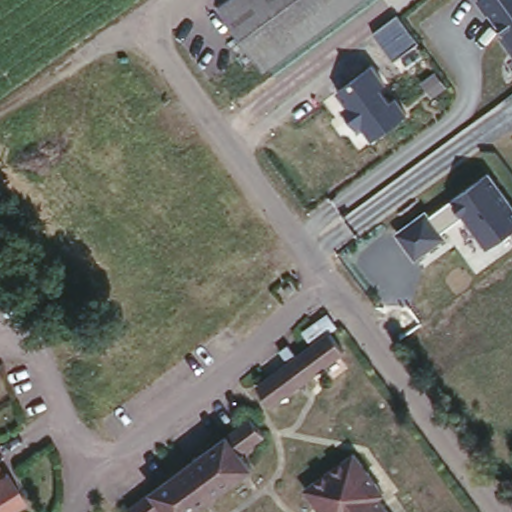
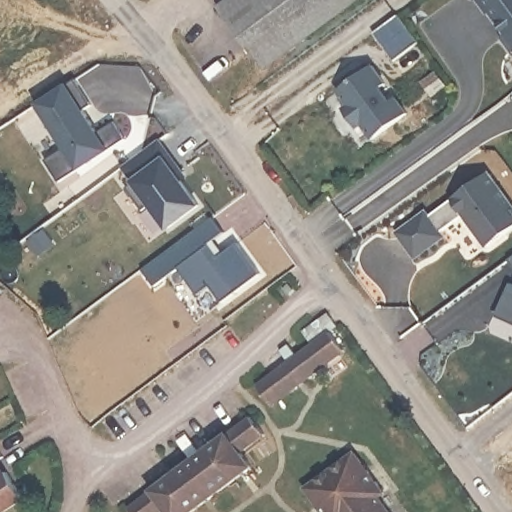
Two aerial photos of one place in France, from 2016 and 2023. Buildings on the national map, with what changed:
unchanged [(223,0),(347,0),(263,58),(223,0)]
unchanged [(480,0),(512,0),(512,46),(480,0)]
unchanged [(420,44),(395,62),(372,32),(399,14),(420,44)]
unchanged [(405,112),(370,139),(337,94),(375,65),(405,112)]
new [(66,145),(39,101),(68,82),(75,77),(90,104),(83,105),(99,130),(114,120),(126,139),(109,151),(79,170),(59,181),(46,161),(66,145)]
new [(163,155),(200,206),(167,230),(129,180),(134,176),(124,164),(152,145),(163,155)]
unchanged [(462,217),(442,230),(446,235),(415,258),(396,232),(425,210),(429,215),(492,170),(512,200),(512,229),(487,248),(462,217)]
new [(224,232),(210,244),(219,256),(237,242),(261,275),(222,302),(210,286),(198,295),(179,270),(156,286),(142,269),(213,219),(224,232)]
unchanged [(251,380),(262,372),(282,358),(272,346),(282,338),(292,350),(325,325),(341,345),(267,401),(251,380)]
unchanged [(247,411),(259,427),(236,445),(248,460),(179,512),(169,512),(161,501),(147,512),(132,512),(125,502),(247,411)]
unchanged [(301,479),(350,442),(379,483),(374,486),(393,512),(325,512),(308,490),(301,479)]
unchanged [(11,473),(27,502),(8,512),(0,512),(0,471),(4,477),(11,473)]

